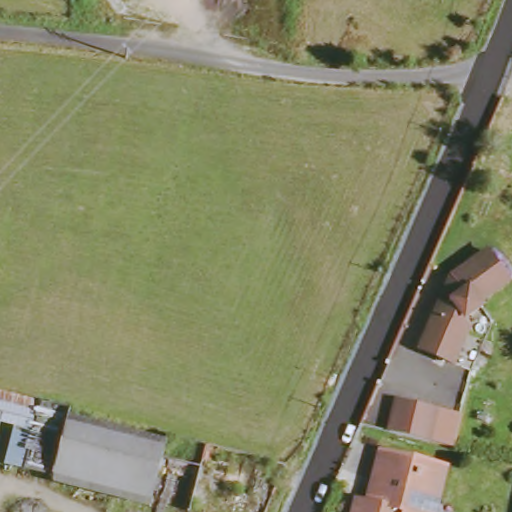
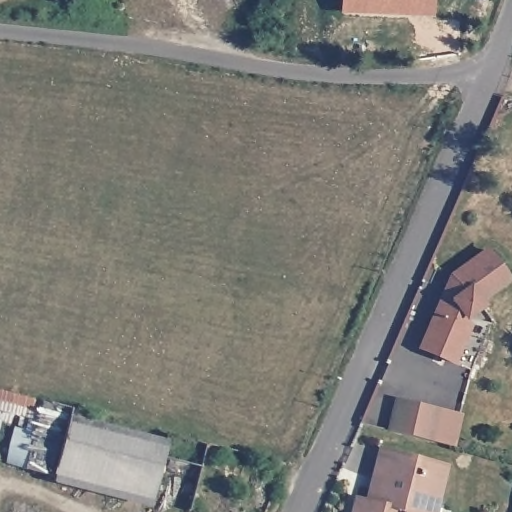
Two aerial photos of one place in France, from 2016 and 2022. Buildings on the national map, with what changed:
new [(341,0),(434,0),(434,15),(340,11),(341,0)]
unchanged [(485,253),(497,271),(502,279),(474,299),(480,306),(457,319),(463,326),(452,359),(422,350),(435,303),(457,292),(446,274),(467,263),(485,253)]
unchanged [(171,439),(157,504),(55,480),(8,465),(17,428),(5,423),(0,451),(0,393),(74,411),(171,439)]
unchanged [(395,433),(405,400),(442,412),(433,445),(395,433)]
unchanged [(375,500),(382,474),(390,447),(453,468),(443,508),(443,512),(356,512),(360,496),(375,500)]

